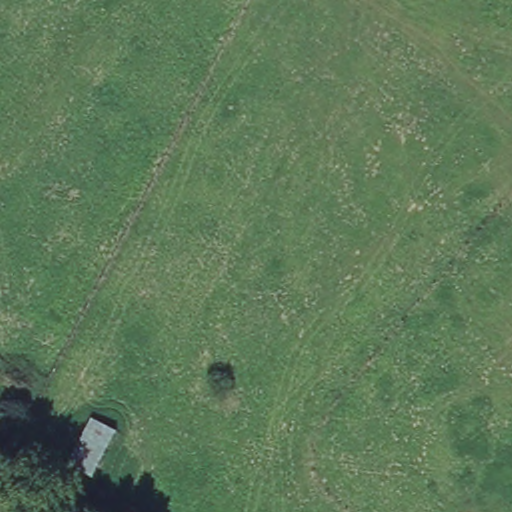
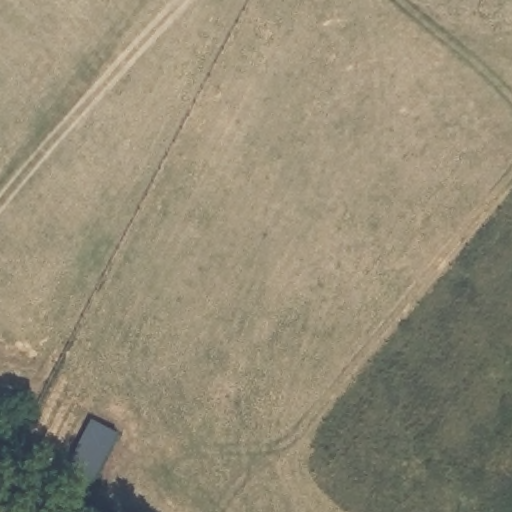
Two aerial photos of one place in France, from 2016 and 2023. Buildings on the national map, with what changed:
unchanged [(119,435),(91,481),(65,466),(90,420),(119,435)]

